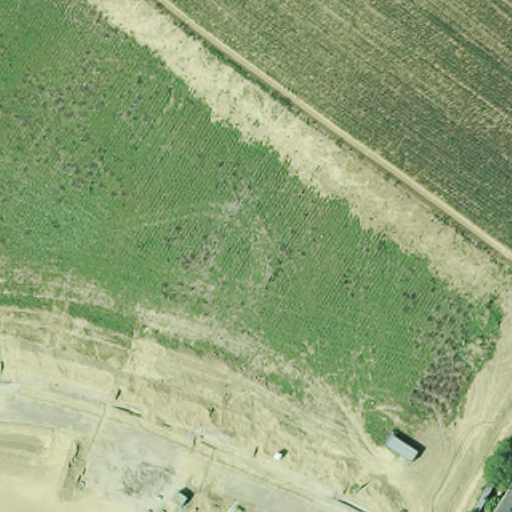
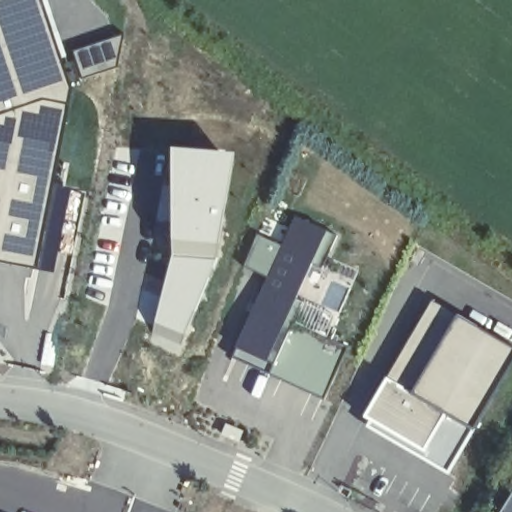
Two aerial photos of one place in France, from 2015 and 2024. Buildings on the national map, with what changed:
new [(41,0),(70,86),(36,266),(0,259),(0,0),(41,0)]
new [(153,322),(170,255),(170,146),(236,152),(217,258),(178,351),(166,345),(167,343),(150,335),(153,322)]
new [(268,276),(245,265),(244,265),(257,232),(283,244),(296,215),(338,234),(323,267),(312,262),(296,297),(303,300),(294,320),(349,345),(325,398),(313,393),(314,392),(324,397),(328,388),(237,346),(253,311),(256,304),(265,283),(268,276)]
new [(372,420),(365,416),(433,301),(454,314),(512,349),(512,367),(473,431),(449,475),(368,427),(372,420)]
new [(237,346),(328,388),(324,397),(314,392),(313,393),(232,356),(237,346)]
unchanged [(512,489),(512,512),(500,512),(499,511),(512,489)]

